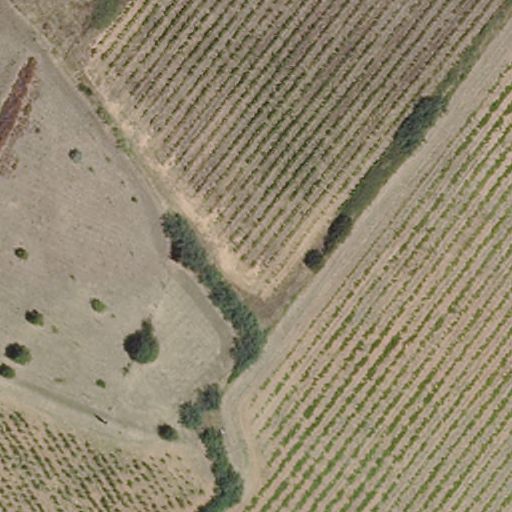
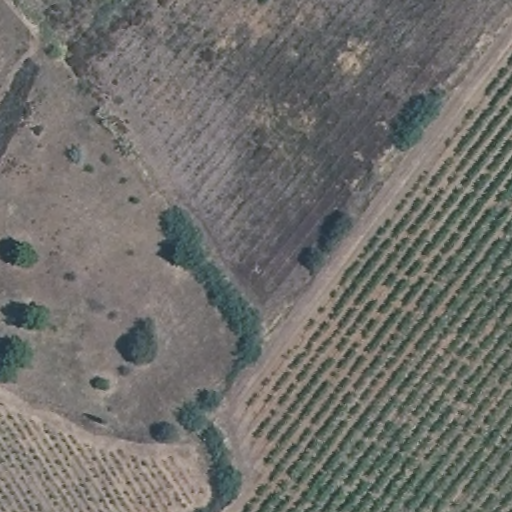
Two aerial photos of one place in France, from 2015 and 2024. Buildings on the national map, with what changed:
[]

